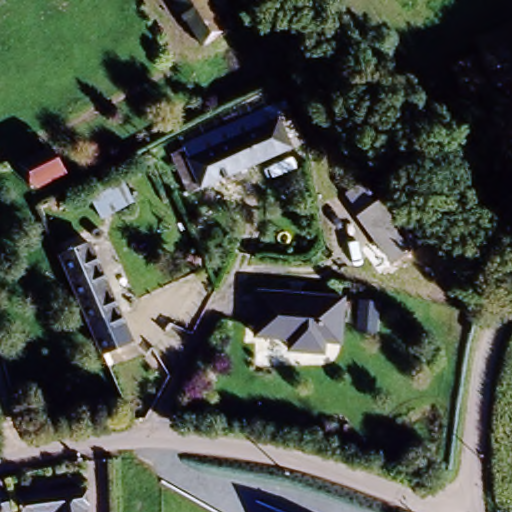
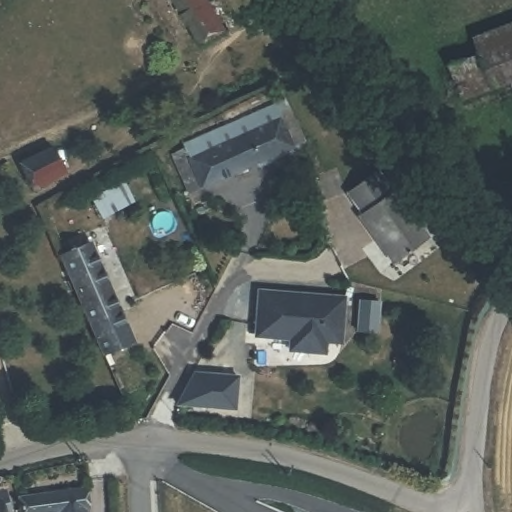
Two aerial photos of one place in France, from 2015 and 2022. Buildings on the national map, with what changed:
unchanged [(204,44),(179,0),(210,0),(228,32),(204,44)]
unchanged [(470,30),(512,14),(512,51),(482,63),(470,30)]
unchanged [(461,109),(448,76),(482,63),(512,51),(512,88),(461,109)]
unchanged [(178,204),(164,178),(179,169),(174,161),(280,106),(295,144),(178,204)]
unchanged [(28,160),(60,144),(74,169),(40,185),(28,160)]
unchanged [(345,207),(349,204),(336,190),(368,163),(433,240),(399,269),(345,207)]
unchanged [(82,243),(128,344),(105,354),(59,254),(82,243)]
unchanged [(334,348),(320,344),(318,357),(283,350),(285,335),(273,333),(252,329),(259,287),(280,289),(343,301),(334,348)]
new [(197,371),(240,376),(238,411),(179,406),(197,371)]
unchanged [(82,509),(78,489),(86,488),(87,512),(70,512),(82,509)]
unchanged [(20,501),(78,489),(82,509),(69,512),(22,512),(20,501)]

